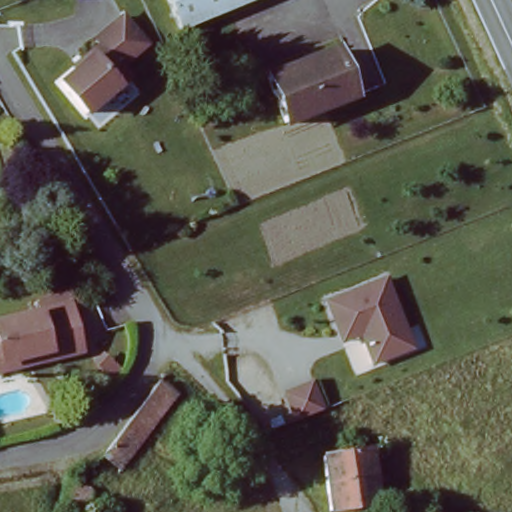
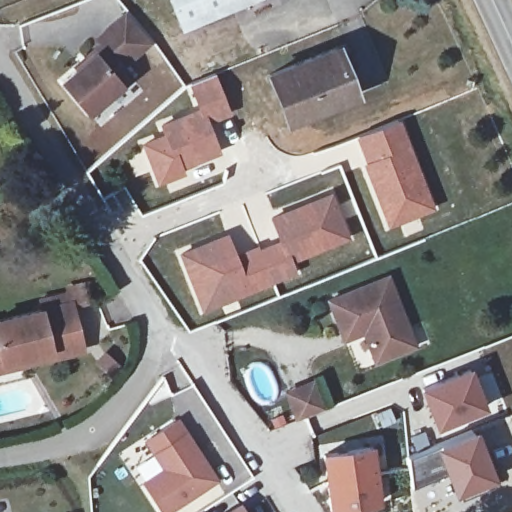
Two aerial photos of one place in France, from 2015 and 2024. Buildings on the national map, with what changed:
unchanged [(163,0),(266,0),(178,35),(163,0)]
unchanged [(102,47),(95,37),(127,17),(152,50),(125,69),(134,82),(82,116),(55,80),(102,47)]
unchanged [(337,46),(347,68),(333,74),(342,97),(282,121),(262,76),(337,46)]
new [(215,72),(232,112),(209,123),(196,109),(195,106),(185,85),(215,72)]
new [(161,131),(157,122),(195,106),(196,109),(209,123),(221,151),(183,167),(184,171),(156,182),(139,141),(161,131)]
new [(399,116),(435,206),(385,226),(360,161),(353,136),(399,116)]
new [(332,188),(350,237),(292,261),(281,240),(278,240),(277,237),(267,214),(332,188)]
new [(228,232),(236,251),(277,237),(278,240),(281,240),(292,261),(297,272),(264,287),(201,310),(176,251),(228,232)]
unchanged [(345,332),(333,301),(392,279),(418,349),(379,363),(367,332),(347,340),(345,332)]
unchanged [(66,301),(81,355),(45,364),(42,352),(0,363),(0,318),(66,301)]
new [(472,366),(489,409),(437,430),(420,387),(472,366)]
unchanged [(290,392),(317,381),(328,410),(300,421),(290,392)]
demolished [(157,383),(173,393),(120,468),(102,457),(106,452),(157,383)]
new [(151,454),(142,440),(176,418),(218,479),(170,512),(161,512),(141,481),(161,468),(151,454)]
new [(477,429),(498,480),(457,498),(447,473),(412,487),(408,457),(435,445),(477,429)]
unchanged [(362,444),(374,500),(330,510),(318,453),(362,444)]
demolished [(98,486),(91,512),(64,512),(72,482),(98,486)]
new [(250,512),(240,512),(247,507),(250,512)]

